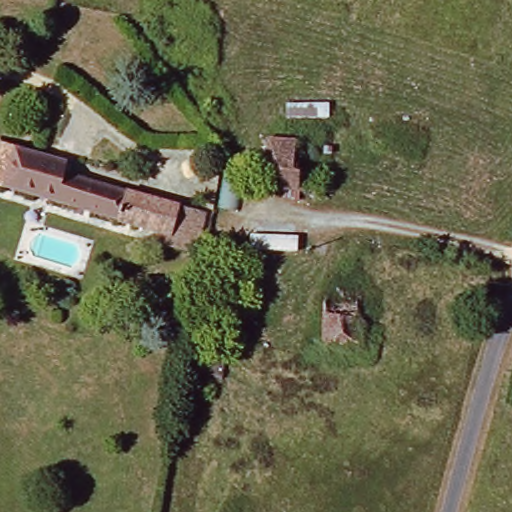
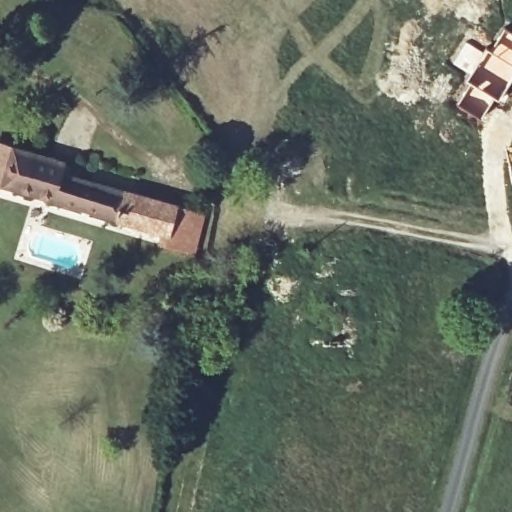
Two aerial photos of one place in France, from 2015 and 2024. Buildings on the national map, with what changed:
new [(467,74),(449,61),(464,40),(484,52),(486,49),(489,50),(504,28),(512,33),(512,81),(499,101),(495,99),(479,123),(454,106),(468,83),(463,81),(467,74)]
unchanged [(254,185),(259,137),(320,141),(320,151),(320,190),(254,185)]
unchanged [(197,253),(189,251),(168,246),(170,236),(1,190),(0,190),(0,147),(11,151),(69,166),(67,174),(200,210),(208,212),(197,253)]
unchanged [(364,271),(368,320),(353,321),(353,349),(319,347),(317,271),(364,271)]

